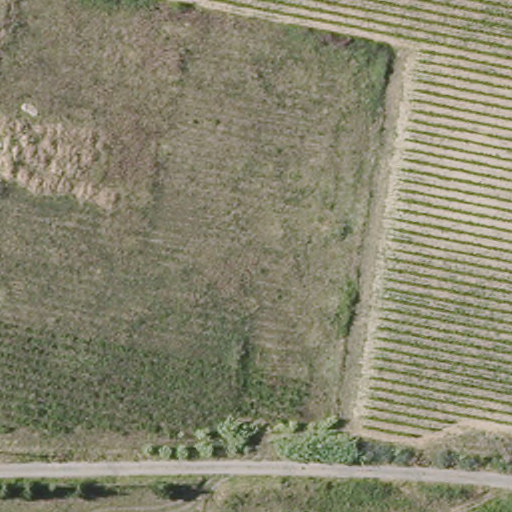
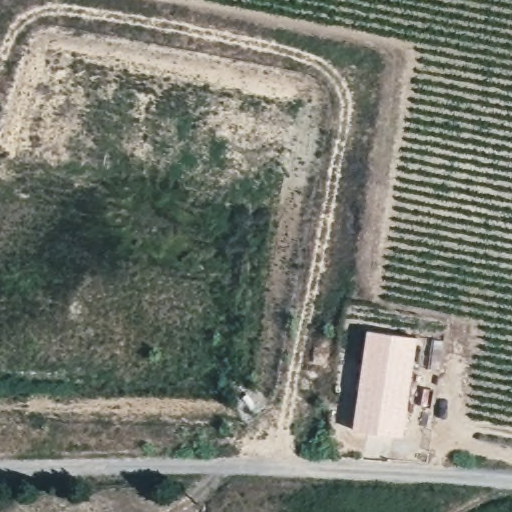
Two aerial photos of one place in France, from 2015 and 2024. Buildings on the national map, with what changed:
new [(353,432),(367,330),(418,337),(403,437),(353,432)]

